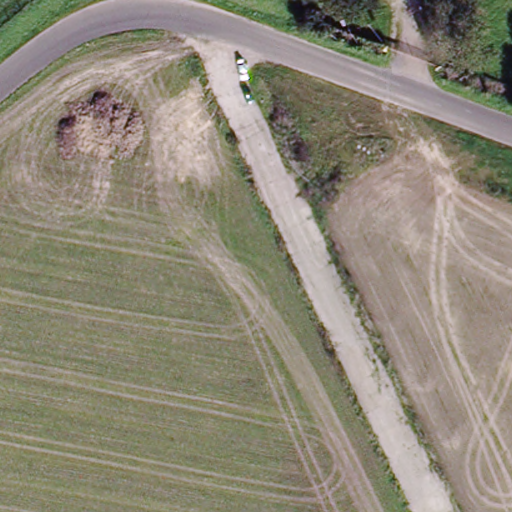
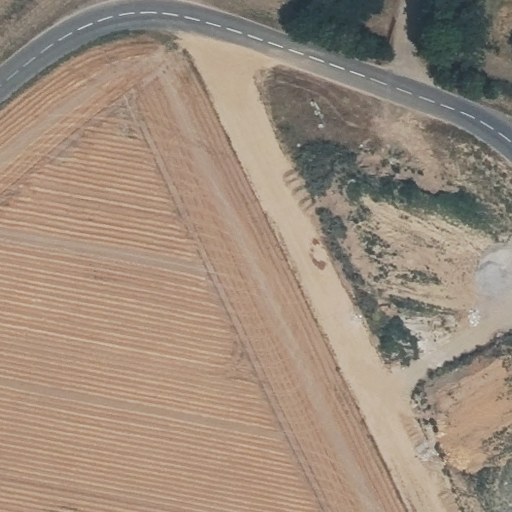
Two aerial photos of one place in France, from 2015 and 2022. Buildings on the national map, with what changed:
[]

